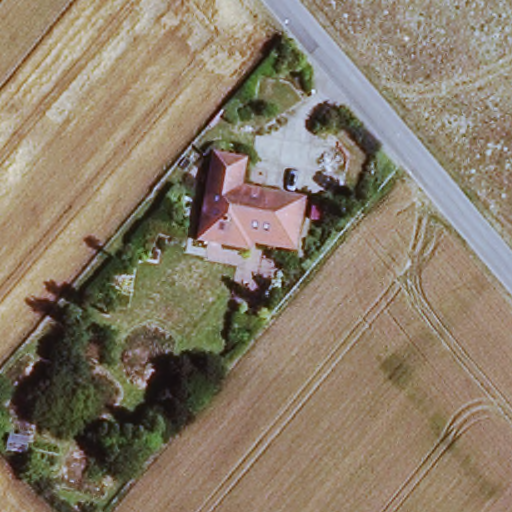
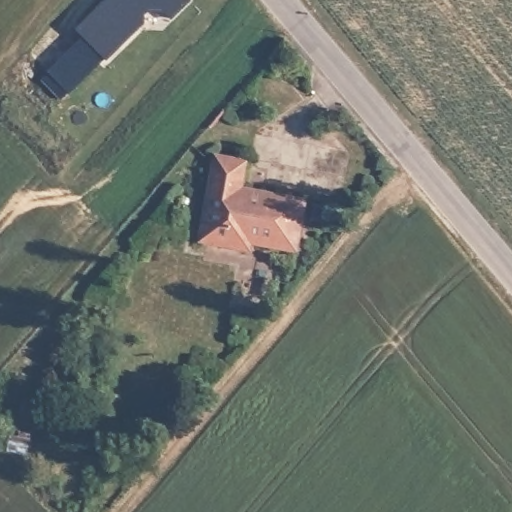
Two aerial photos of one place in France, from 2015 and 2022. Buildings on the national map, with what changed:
new [(105,0),(189,0),(191,2),(171,21),(161,11),(150,10),(145,15),(145,24),(106,62),(76,29),(105,0)]
unchanged [(300,252),(247,243),(247,254),(200,240),(212,152),(246,157),(241,187),(305,198),(300,252)]

